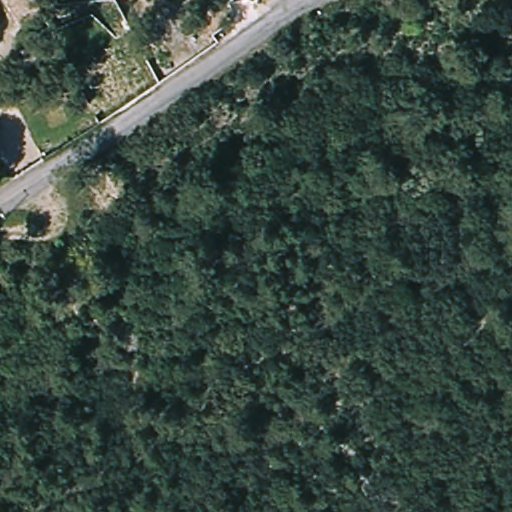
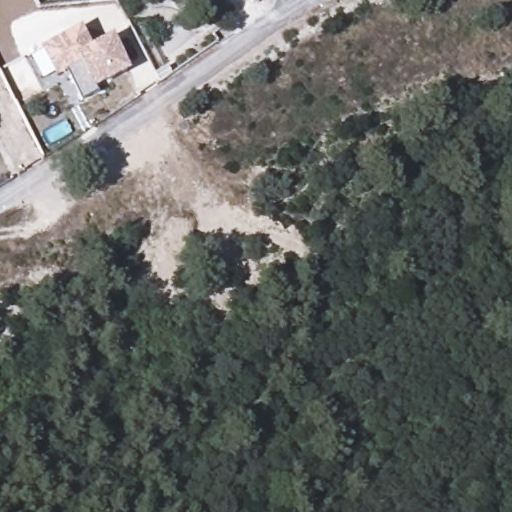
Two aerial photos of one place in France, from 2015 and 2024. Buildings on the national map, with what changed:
new [(43,54),(41,49),(81,27),(91,48),(112,38),(129,72),(95,90),(97,95),(83,102),(67,72),(56,77),(55,74),(43,80),(31,58),(43,54)]

